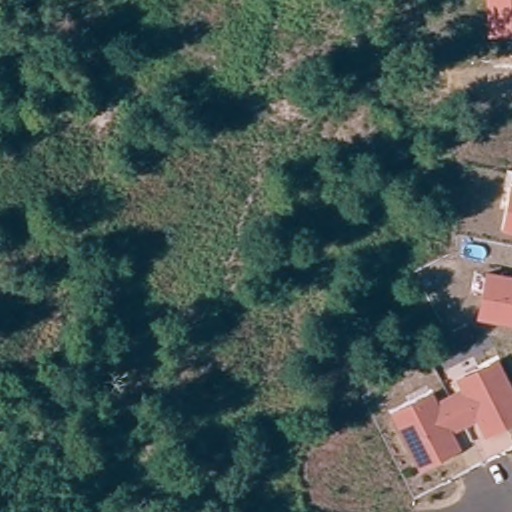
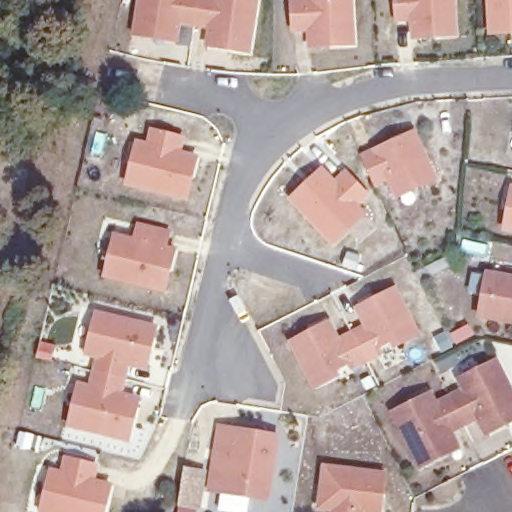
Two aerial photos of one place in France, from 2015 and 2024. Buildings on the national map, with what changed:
new [(194,0),(190,27),(175,24),(172,43),(130,36),(136,0),(194,0)]
new [(205,46),(208,29),(190,27),(194,0),(257,0),(250,54),(205,46)]
new [(290,32),(288,0),(353,0),(355,45),(307,48),(306,33),(290,32)]
new [(410,40),(410,24),(396,24),(394,0),(456,0),(458,38),(410,40)]
unchanged [(488,36),(486,0),(512,0),(512,35),(488,36)]
new [(124,186),(136,139),(145,140),(150,127),(185,136),(182,150),(199,154),(186,203),(124,186)]
new [(390,141),(410,133),(430,180),(392,197),(384,179),(370,185),(357,156),(371,150),(390,141)]
new [(287,199),(322,164),(334,177),(345,169),(370,194),(358,204),(365,213),(332,248),(287,199)]
unchanged [(501,231),(510,183),(512,183),(512,233),(501,231)]
new [(102,277),(114,234),(132,237),(136,223),(171,230),(167,245),(176,247),(165,293),(102,277)]
unchanged [(486,274),(512,279),(512,321),(480,316),(486,274)]
new [(362,325),(353,308),(396,285),(420,334),(393,349),(390,342),(379,349),(382,356),(365,365),(363,359),(349,332),(362,325)]
new [(66,427),(76,381),(88,383),(94,359),(84,356),(95,310),(158,326),(146,371),(129,366),(124,392),(140,394),(129,443),(66,427)]
new [(325,322),(335,339),(349,332),(363,359),(311,387),(287,341),(325,322)]
unchanged [(484,429),(477,416),(464,423),(456,408),(450,396),(464,389),(458,377),(496,359),(512,391),(512,419),(505,423),(486,433),(484,429)]
unchanged [(438,457),(420,466),(392,411),(430,392),(436,403),(450,396),(456,408),(464,423),(450,430),(456,443),(458,447),(438,457)]
new [(216,426),(232,428),(275,436),(265,499),(206,489),(212,449),(216,426)]
new [(50,468),(60,469),(64,455),(99,464),(94,479),(112,484),(105,512),(39,512),(50,468)]
new [(320,461),(380,469),(375,511),(360,509),(360,512),(328,512),(329,504),(315,503),(320,461)]

